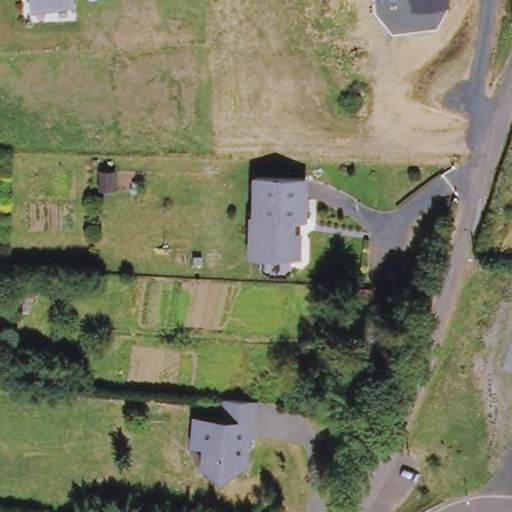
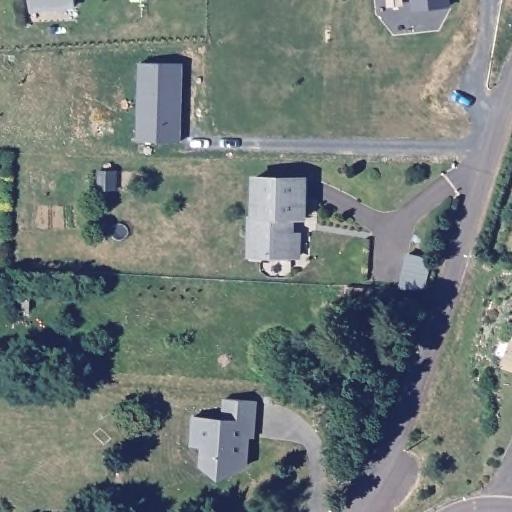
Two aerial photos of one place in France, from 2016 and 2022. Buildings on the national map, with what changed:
unchanged [(73,0),(74,8),(53,10),(52,5),(30,6),(30,0),(73,0)]
unchanged [(417,11),(415,0),(451,0),(452,8),(417,11)]
new [(183,65),(178,142),(136,143),(138,64),(183,65)]
unchanged [(120,178),(119,198),(103,196),(104,177),(120,178)]
unchanged [(251,255),(255,215),(258,215),(261,178),(310,182),(306,221),(291,219),(290,232),(294,233),(302,234),(299,259),(291,259),(251,255)]
new [(408,255),(430,262),(419,296),(395,294),(408,255)]
unchanged [(253,402),(249,439),(244,439),(243,459),(236,461),(235,469),(216,475),(198,465),(199,446),(188,445),(191,416),(221,419),(223,398),(253,402)]

